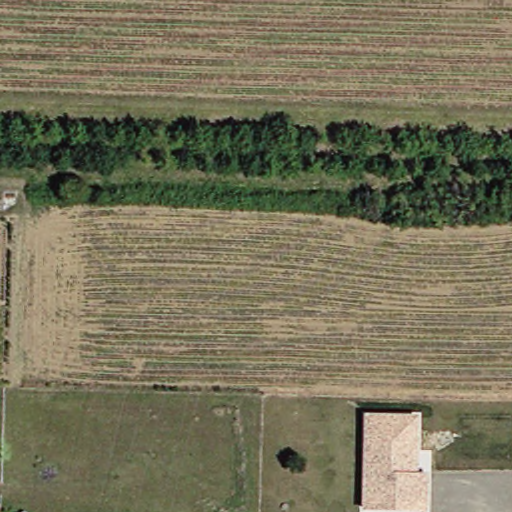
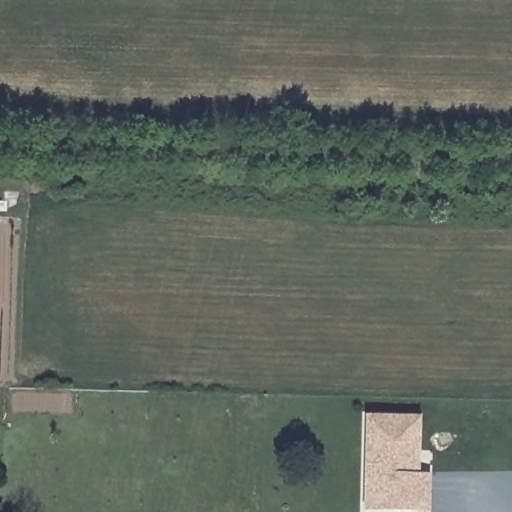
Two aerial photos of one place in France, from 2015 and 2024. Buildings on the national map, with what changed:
unchanged [(417,419),(417,432),(417,451),(417,464),(417,467),(417,474),(428,475),(427,512),(367,511),(368,466),(368,441),(368,419),(383,419),(405,419),(417,419)]

